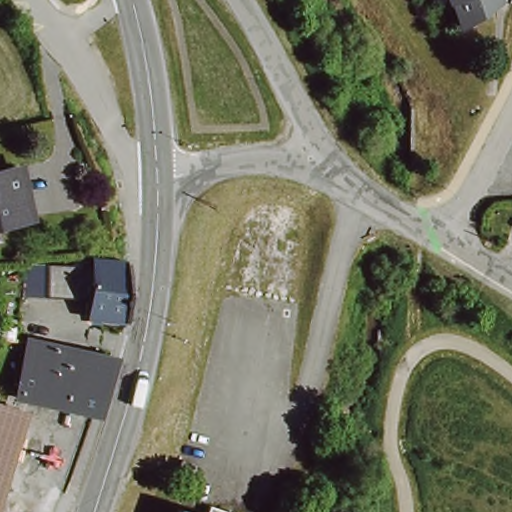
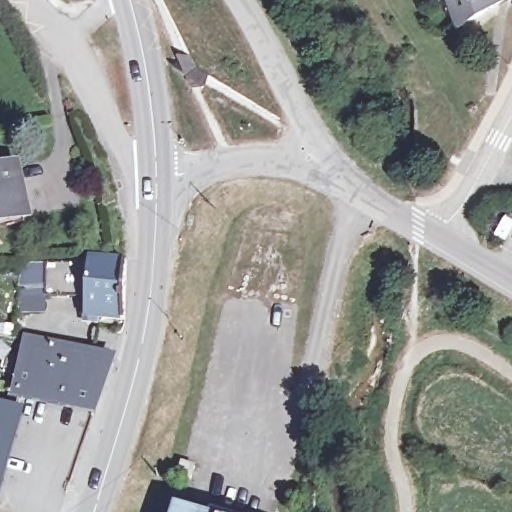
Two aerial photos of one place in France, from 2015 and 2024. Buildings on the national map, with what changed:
unchanged [(469,29),(461,3),(455,4),(454,0),(512,0),(512,2),(506,6),(469,29)]
unchanged [(29,215),(12,219),(10,212),(0,215),(0,170),(19,166),(29,215)]
unchanged [(89,301),(92,267),(92,260),(129,261),(125,326),(87,323),(89,301)]
unchanged [(21,297),(23,265),(92,267),(89,301),(21,297)]
unchanged [(95,407),(20,391),(29,337),(113,357),(95,407)]
unchanged [(0,428),(0,411),(5,413),(0,428)]
unchanged [(197,467),(192,477),(181,473),(183,461),(197,467)]
unchanged [(214,510),(221,512),(213,512),(214,510)]

